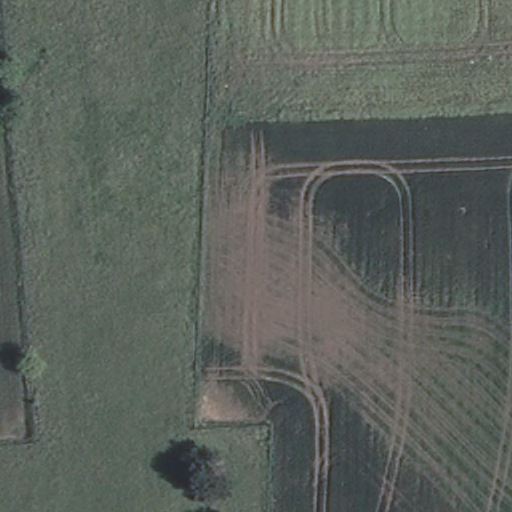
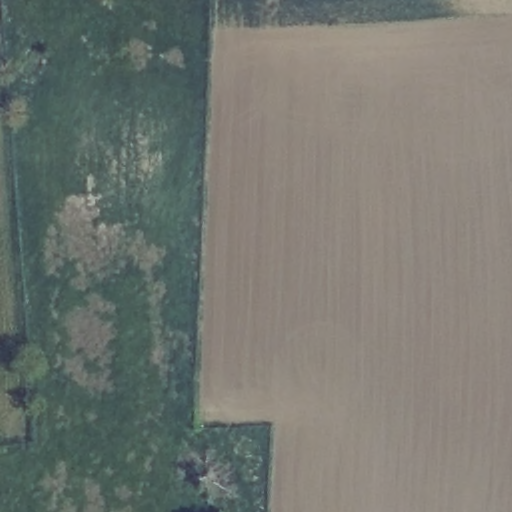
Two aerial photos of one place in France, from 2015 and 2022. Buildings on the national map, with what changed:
[]

